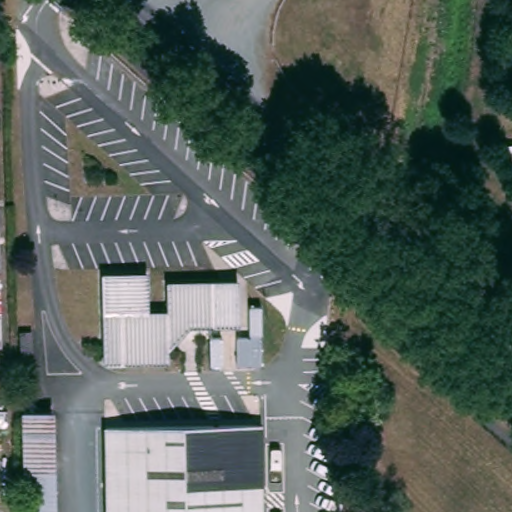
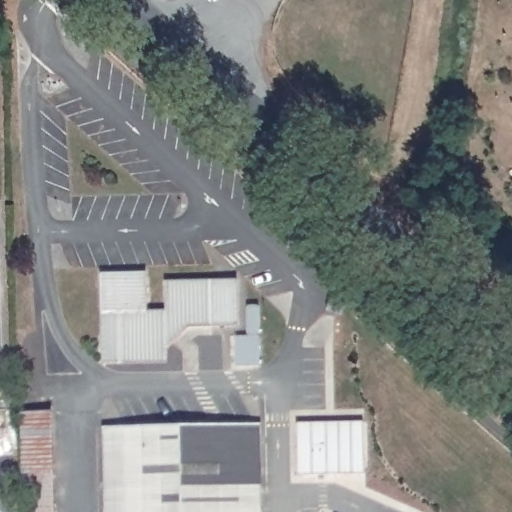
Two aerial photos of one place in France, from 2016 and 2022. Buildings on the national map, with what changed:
unchanged [(106,272),(152,272),(152,310),(106,312),(106,272)]
unchanged [(168,309),(168,283),(214,281),(213,328),(185,327),(171,339),(171,362),(106,364),(106,312),(152,310),(168,309)]
unchanged [(242,281),(241,327),(213,328),(214,281),(242,281)]
new [(258,337),(258,368),(235,368),(234,337),(258,337)]
unchanged [(14,414),(34,414),(37,512),(20,512),(14,414)]
new [(365,422),(367,474),(300,476),(298,425),(365,422)]
unchanged [(104,431),(262,426),(265,512),(106,512),(104,431)]

